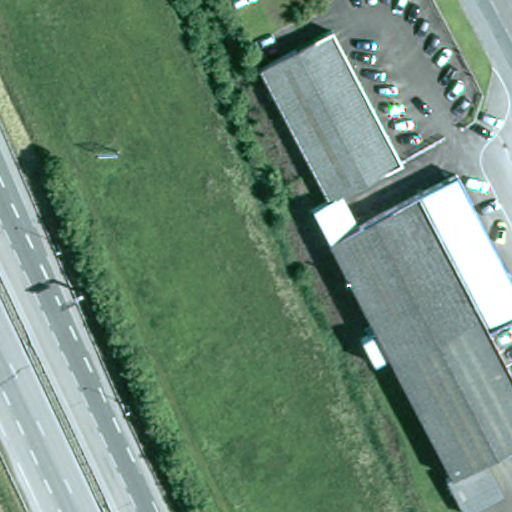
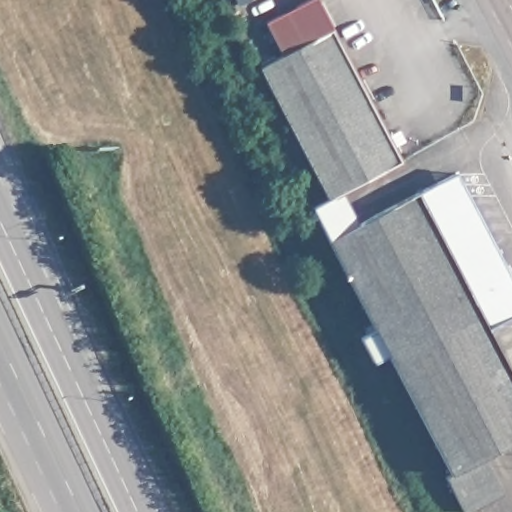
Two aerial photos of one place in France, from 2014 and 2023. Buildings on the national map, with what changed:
new [(284,61),(265,22),(307,0),(317,0),(336,36),(284,61)]
unchanged [(315,213),(330,205),(262,72),(336,36),(404,168),(344,198),(356,220),(334,231),(326,235),(315,213)]
unchanged [(463,512),(455,497),(447,481),(452,478),(389,358),(374,366),(363,341),(369,337),(366,332),(374,328),(326,235),(334,231),(356,220),(360,230),(460,180),(504,262),(512,279),(512,323),(491,334),(512,375),(512,447),(486,460),(494,477),(503,495),(469,512),(463,512)]

